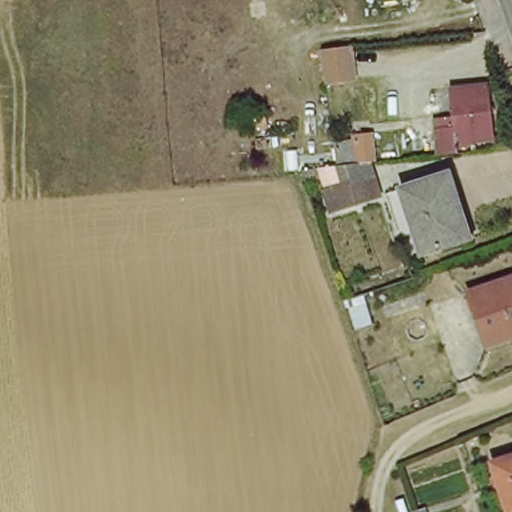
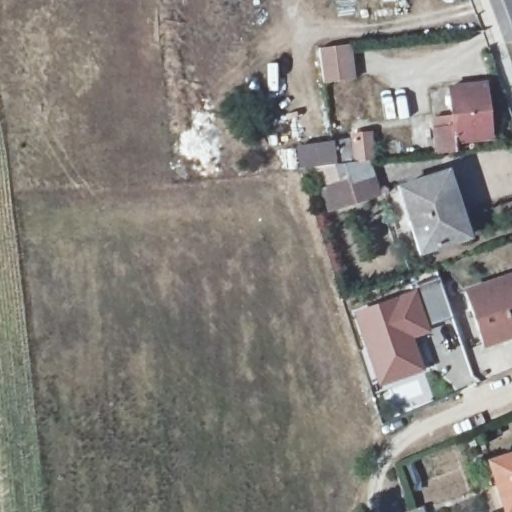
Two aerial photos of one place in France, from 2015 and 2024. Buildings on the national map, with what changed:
unchanged [(350,79),(327,82),(323,47),(347,45),(350,79)]
unchanged [(439,153),(439,127),(460,124),(455,85),(490,80),(499,131),(463,135),(463,150),(439,153)]
unchanged [(263,107),(267,131),(249,134),(245,110),(263,107)]
unchanged [(348,162),(344,134),(366,131),(370,160),(360,160),(375,196),(328,214),(315,180),(299,182),(294,169),(330,165),(348,162)]
unchanged [(398,190),(445,175),(467,236),(421,253),(398,190)]
unchanged [(468,292),(512,278),(512,336),(485,344),(468,292)]
demolished [(363,289),(373,320),(356,325),(345,295),(363,289)]
new [(415,290),(429,335),(416,338),(425,371),(379,385),(358,305),(415,290)]
unchanged [(512,456),(512,512),(503,512),(487,466),(512,456)]

